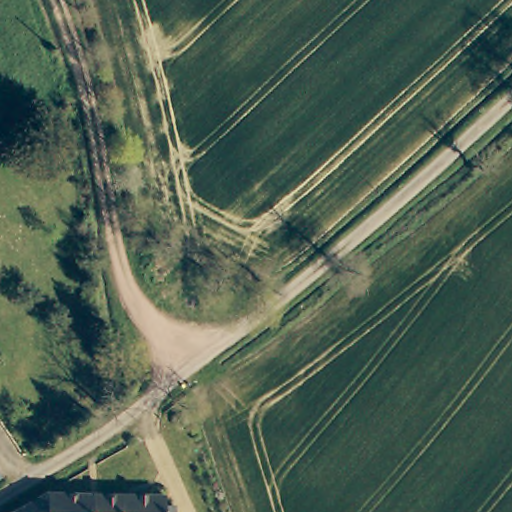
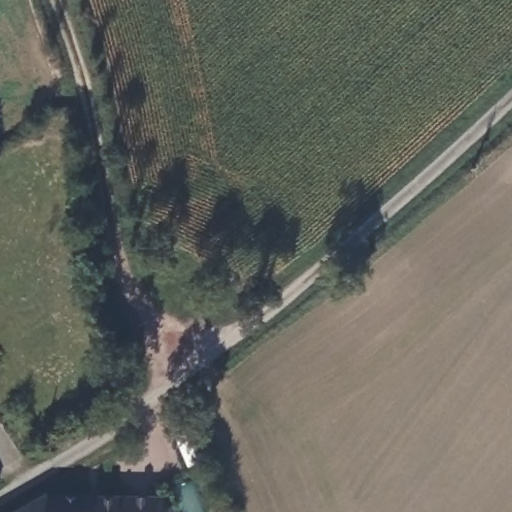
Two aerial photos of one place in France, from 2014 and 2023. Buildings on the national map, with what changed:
unchanged [(174,416),(176,414),(180,413),(184,414),(187,417),(189,420),(189,424),(186,429),(183,431),(179,432),(175,431),(172,428),(171,424),(171,421),(172,419),(174,416)]
unchanged [(0,475),(0,469),(3,474),(0,475)]
unchanged [(162,506),(173,506),(173,512),(10,512),(18,508),(42,494),(162,495),(162,506)]

